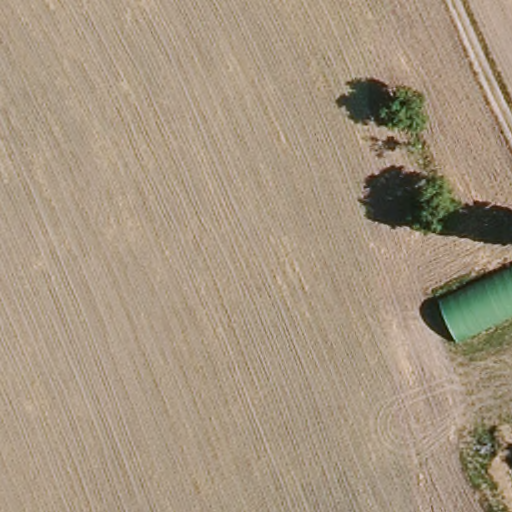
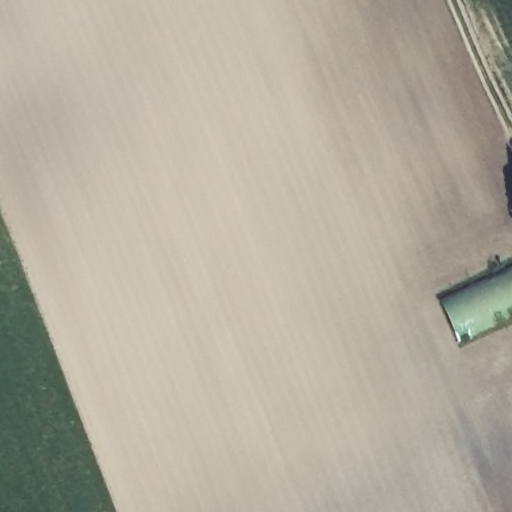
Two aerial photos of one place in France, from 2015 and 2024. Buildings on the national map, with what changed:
unchanged [(512,316),(456,341),(439,301),(512,269),(512,316)]

